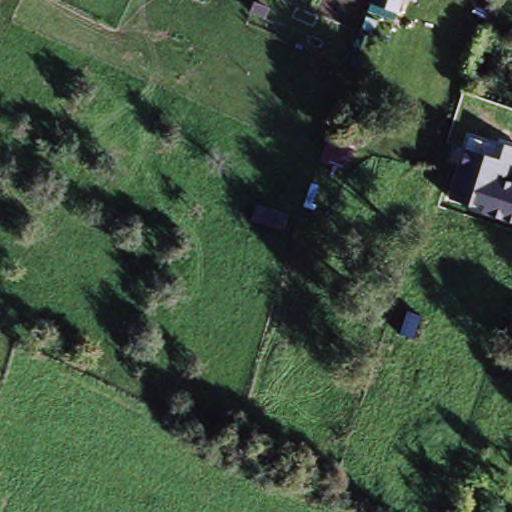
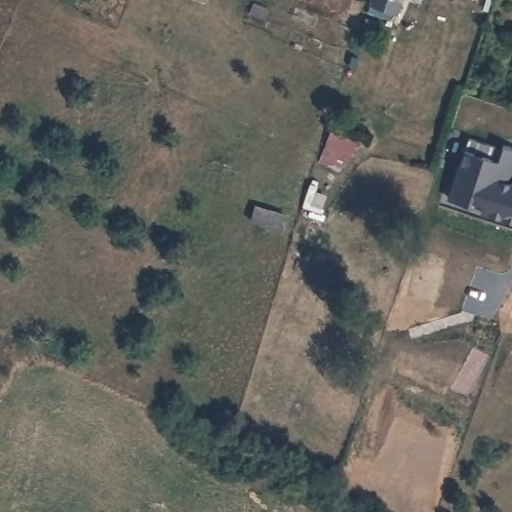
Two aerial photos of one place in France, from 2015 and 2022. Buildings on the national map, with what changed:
unchanged [(391,17),(365,8),(368,0),(397,0),(391,17)]
unchanged [(512,147),(512,217),(450,196),(465,148),(469,134),(512,147)]

